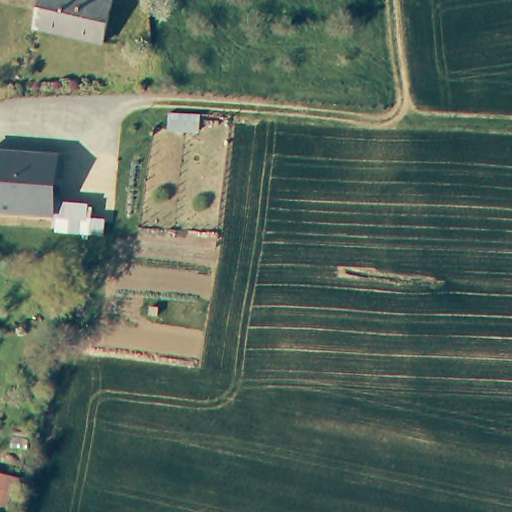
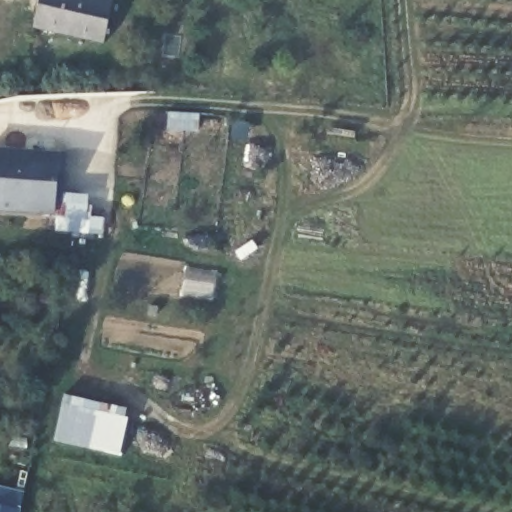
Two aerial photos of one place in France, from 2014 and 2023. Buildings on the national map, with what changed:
unchanged [(106,42),(39,29),(45,0),(110,0),(115,1),(106,42)]
unchanged [(59,212),(0,206),(0,146),(70,153),(69,174),(62,173),(60,199),(59,212)]
new [(65,395),(128,408),(125,418),(130,419),(122,454),(55,441),(65,395)]
unchanged [(22,484),(16,512),(0,512),(0,479),(22,484)]

